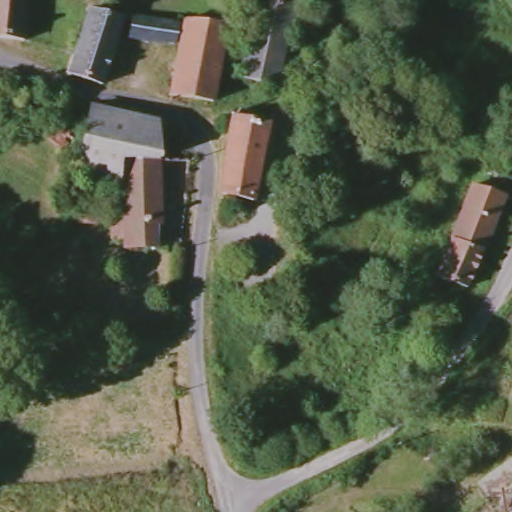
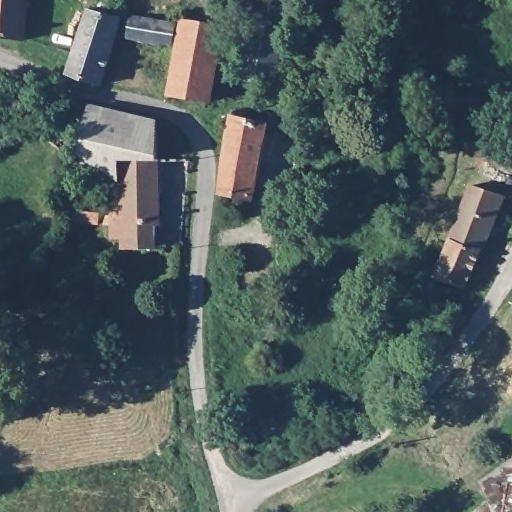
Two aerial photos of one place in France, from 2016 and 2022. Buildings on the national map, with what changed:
unchanged [(0,36),(0,0),(34,0),(30,39),(0,36)]
unchanged [(276,83),(254,77),(249,94),(244,94),(234,90),(252,10),(246,9),(248,0),(294,0),(276,83)]
unchanged [(120,14),(97,79),(94,88),(60,76),(68,51),(84,2),(120,14)]
unchanged [(178,17),(173,46),(135,37),(140,9),(178,17)]
unchanged [(229,27),(212,99),(207,100),(169,90),(186,20),(187,16),(229,27)]
unchanged [(306,108),(300,132),(267,125),(273,101),(306,108)]
unchanged [(260,110),(257,178),(255,211),(226,211),(225,225),(217,223),(225,107),(260,110)]
unchanged [(126,166),(120,165),(119,179),(79,171),(91,111),(154,126),(161,160),(160,165),(126,166)]
unchanged [(76,144),(66,157),(41,140),(52,125),(76,144)]
unchanged [(160,165),(160,225),(156,228),(154,247),(122,247),(122,237),(112,237),(112,202),(126,201),(126,166),(160,165)]
unchanged [(447,242),(468,188),(498,198),(480,252),(447,242)]
unchanged [(467,288),(436,280),(447,242),(480,252),(467,288)]

